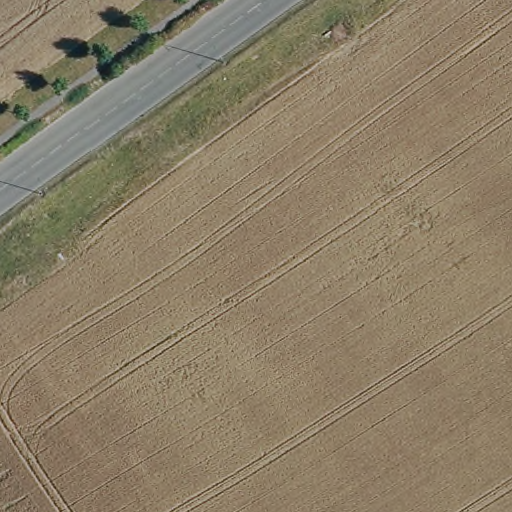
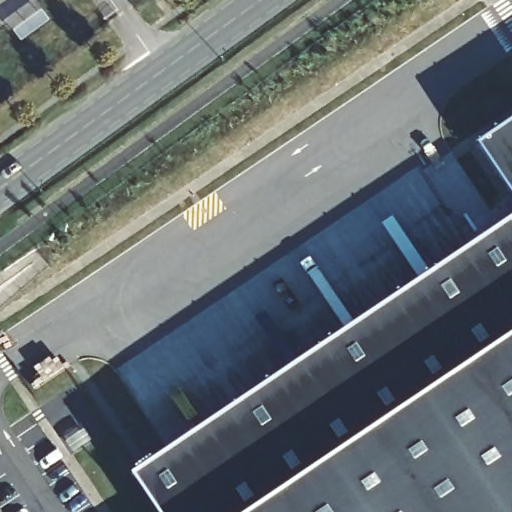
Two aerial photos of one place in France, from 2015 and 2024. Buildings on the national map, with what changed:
new [(40,10),(47,20),(20,41),(12,30),(40,10)]
new [(512,120),(512,200),(473,145),(512,120)]
new [(140,478),(512,223),(512,512),(162,512),(140,478)]
new [(84,429),(92,439),(73,452),(66,442),(84,429)]

